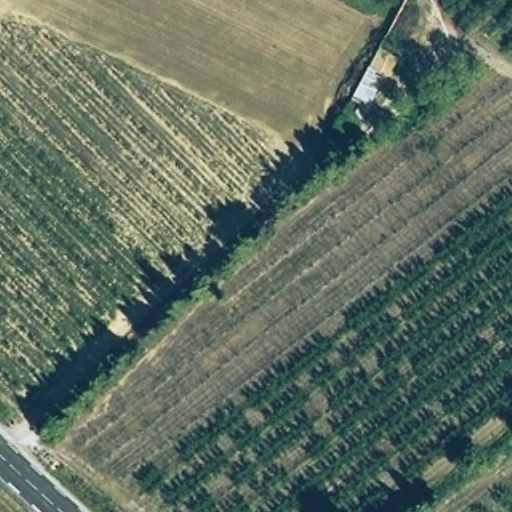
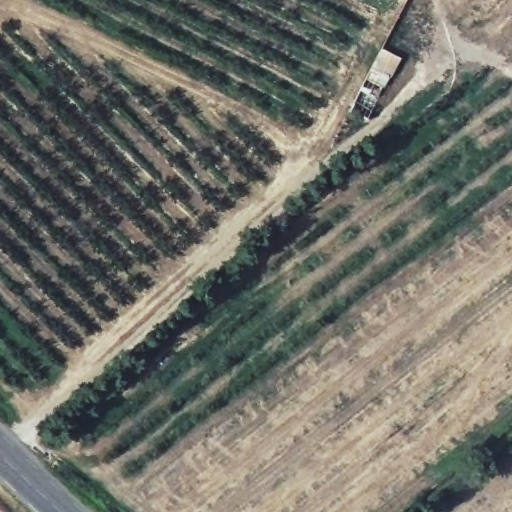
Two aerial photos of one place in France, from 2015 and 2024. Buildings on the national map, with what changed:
unchanged [(344,109),(382,42),(400,54),(365,120),(344,109)]

